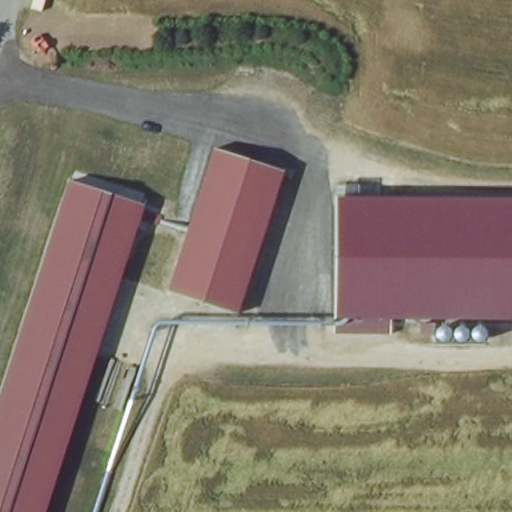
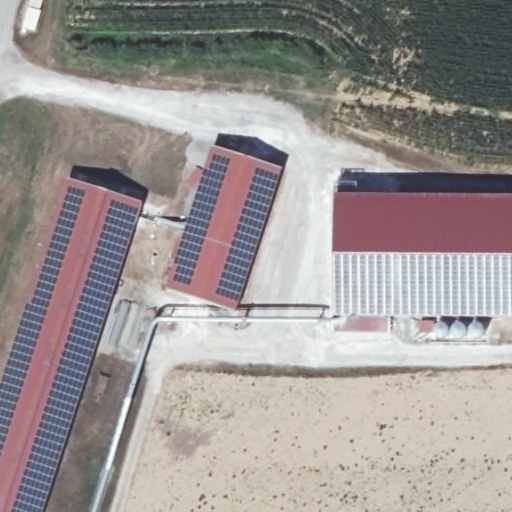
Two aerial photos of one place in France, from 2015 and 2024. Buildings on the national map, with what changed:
unchanged [(281,172),(235,313),(168,292),(213,152),(281,172)]
unchanged [(140,203),(44,512),(0,512),(0,390),(68,181),(140,203)]
unchanged [(512,200),(512,323),(336,322),(336,199),(512,200)]

